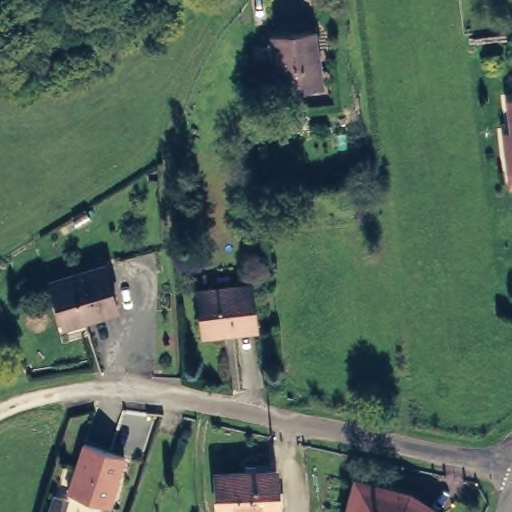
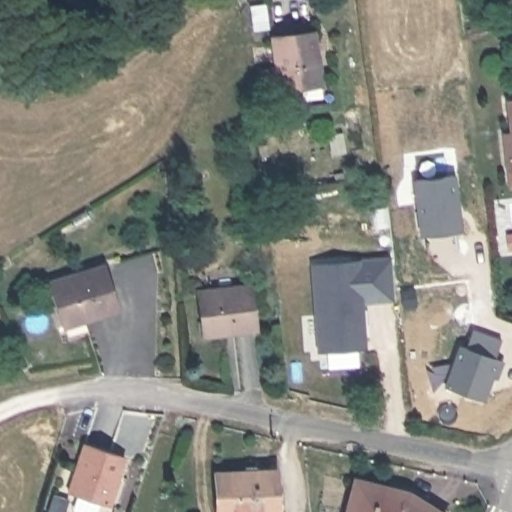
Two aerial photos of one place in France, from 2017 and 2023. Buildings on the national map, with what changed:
unchanged [(308,90),(286,94),(276,95),(274,75),(283,74),(279,37),(321,31),(326,81),(326,87),(308,90)]
unchanged [(506,166),(503,129),(510,129),(507,96),(512,95),(512,165),(506,166)]
new [(392,257),(396,297),(363,301),(367,347),(323,351),(314,266),(392,257)]
unchanged [(113,303),(61,322),(47,282),(101,263),(113,303)]
unchanged [(202,331),(197,292),(249,286),(255,331),(233,333),(203,337),(202,331)]
new [(461,345),(467,347),(474,327),(502,337),(494,357),(503,360),(497,377),(492,376),(484,400),(446,386),(461,345)]
unchanged [(112,506),(71,492),(88,443),(128,457),(112,506)]
unchanged [(273,512),(216,512),(214,479),(243,477),(243,471),(272,470),(273,512)]
unchanged [(356,477),(406,487),(447,510),(446,512),(350,512),(356,477)]

